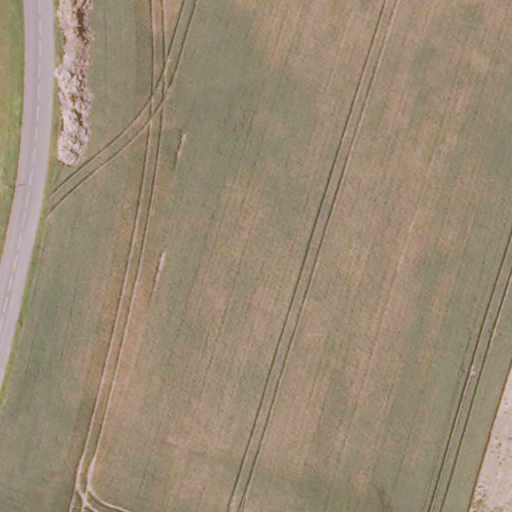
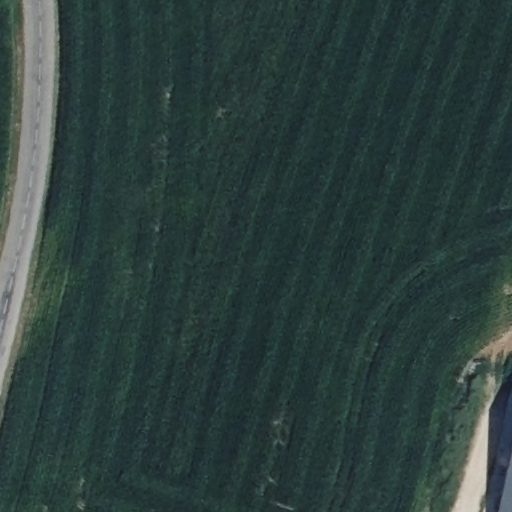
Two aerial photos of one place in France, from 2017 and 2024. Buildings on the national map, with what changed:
new [(512,451),(512,512),(498,512),(512,451)]

